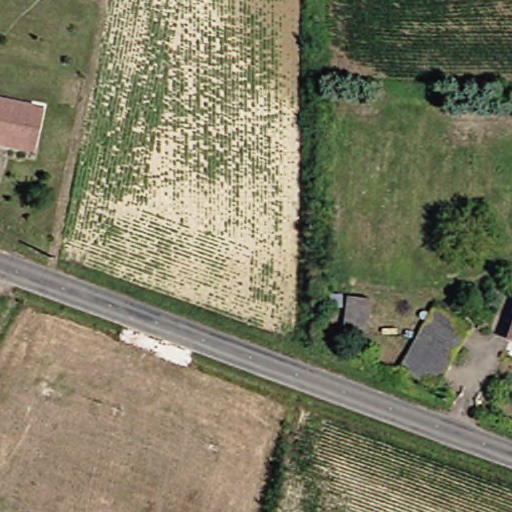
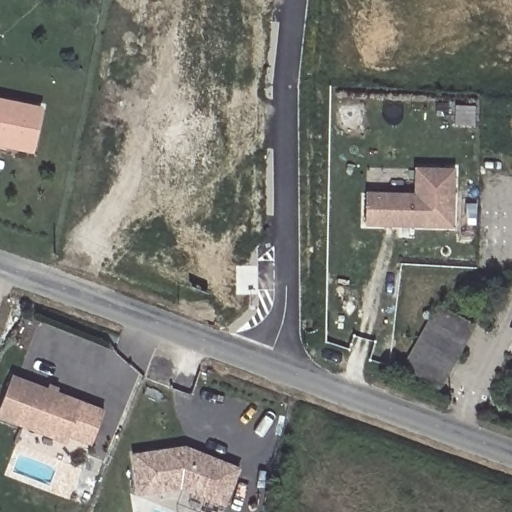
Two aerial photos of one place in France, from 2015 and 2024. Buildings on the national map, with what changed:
unchanged [(15,147),(0,144),(0,99),(46,109),(42,133),(38,152),(15,147)]
new [(454,229),(366,226),(367,191),(413,192),(415,166),(456,167),(454,229)]
unchanged [(439,304),(476,319),(450,381),(413,366),(439,304)]
new [(69,442),(0,415),(0,412),(14,376),(82,402),(69,442)]
new [(186,444),(242,466),(226,506),(181,489),(139,495),(133,452),(186,444)]

